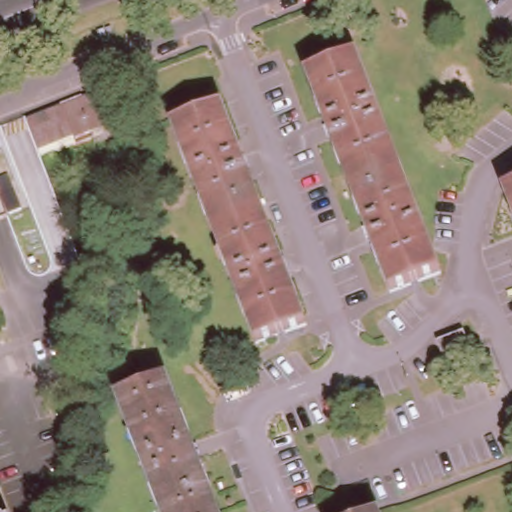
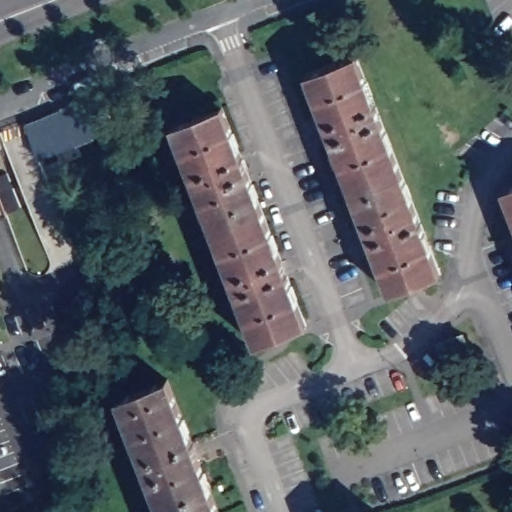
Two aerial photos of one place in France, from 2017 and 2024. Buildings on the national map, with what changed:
unchanged [(362,59),(447,278),(397,298),(312,78),(362,59)]
unchanged [(40,160),(27,128),(94,101),(104,97),(107,104),(97,107),(108,133),(40,160)]
unchanged [(224,106),(308,325),(257,345),(172,126),(224,106)]
unchanged [(10,158),(24,191),(9,197),(13,205),(0,210),(0,162),(10,158)]
unchanged [(505,190),(512,188),(512,210),(505,190)]
unchanged [(468,348),(446,356),(441,343),(463,335),(468,348)]
unchanged [(167,380),(218,512),(159,512),(116,400),(167,380)]

